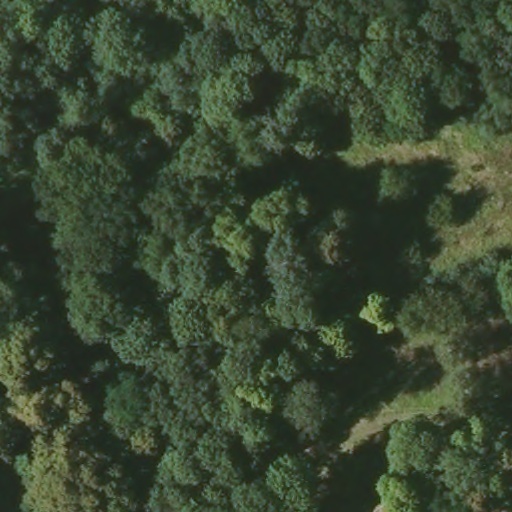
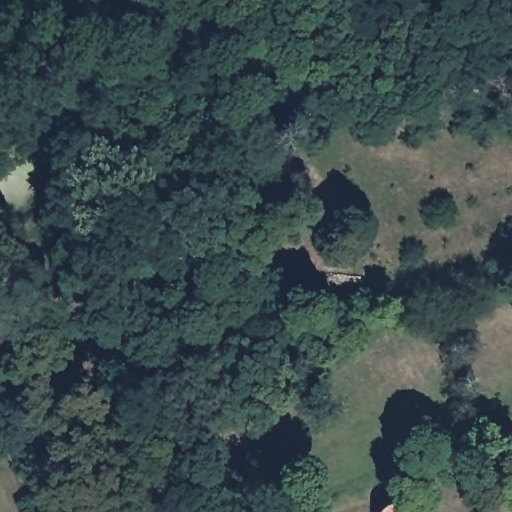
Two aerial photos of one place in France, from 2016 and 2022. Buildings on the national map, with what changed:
unchanged [(375,507),(385,501),(393,500),(400,503),(405,508),(406,512),(374,512),(375,507)]

